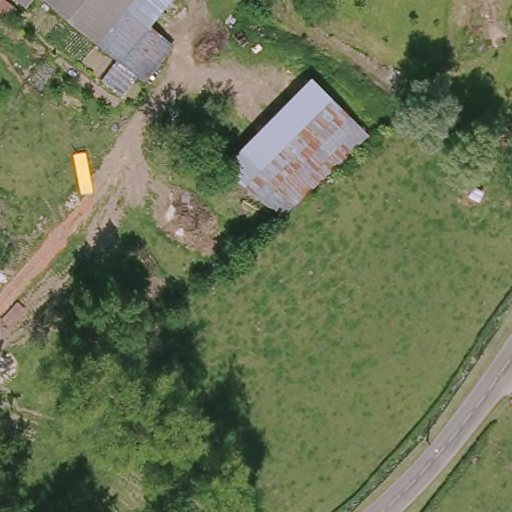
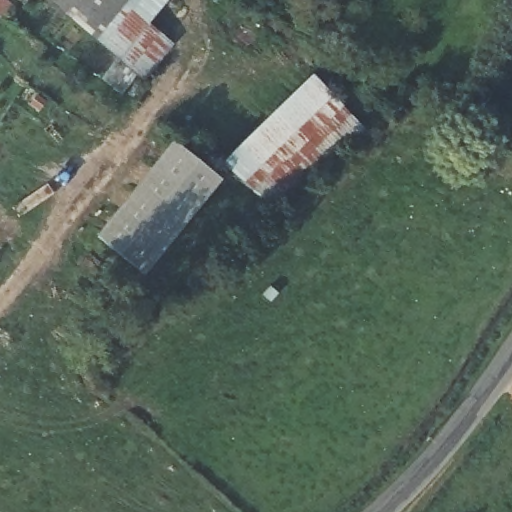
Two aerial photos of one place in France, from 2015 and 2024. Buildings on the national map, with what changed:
unchanged [(20,0),(29,0),(25,4),(20,0)]
unchanged [(45,0),(119,0),(152,22),(165,39),(172,48),(137,75),(45,0)]
unchanged [(119,0),(180,0),(152,22),(119,0)]
unchanged [(220,167),(308,73),(353,119),(275,205),(220,167)]
new [(178,147),(223,187),(139,284),(93,244),(178,147)]

